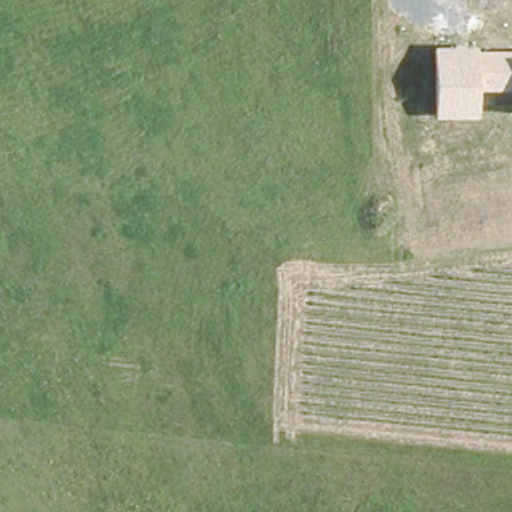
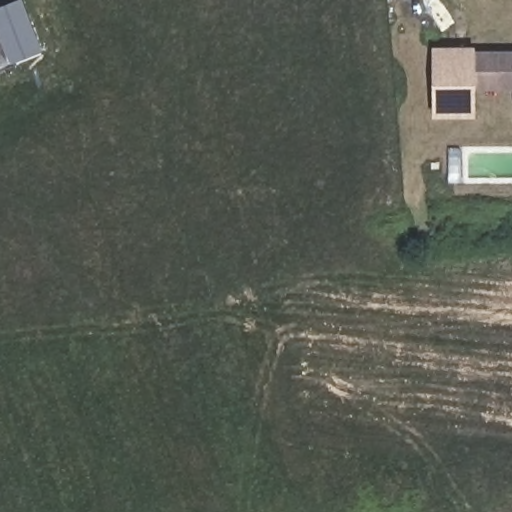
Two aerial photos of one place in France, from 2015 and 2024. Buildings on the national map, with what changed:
new [(41,51),(17,61),(17,63),(0,70),(0,69),(0,5),(12,0),(23,0),(41,51)]
unchanged [(476,117),(434,118),(433,48),(475,47),(476,53),(512,51),(512,89),(477,91),(476,117)]

